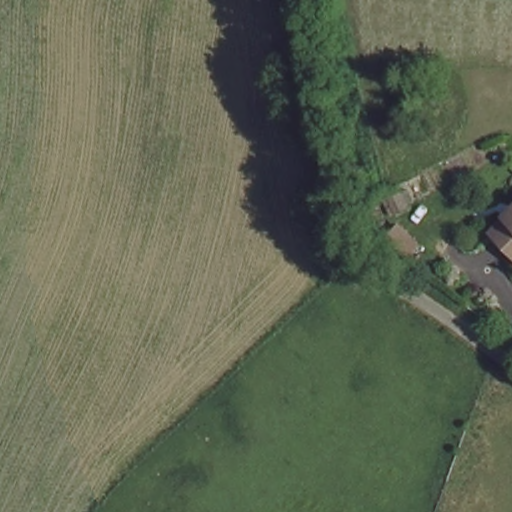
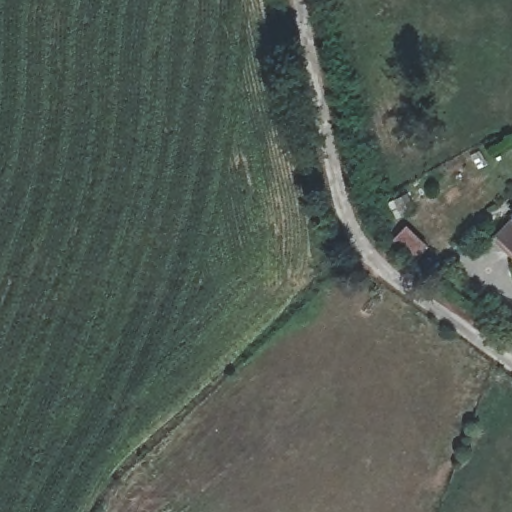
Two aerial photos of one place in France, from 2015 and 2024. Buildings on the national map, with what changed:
unchanged [(466,223),(512,187),(512,274),(466,223)]

